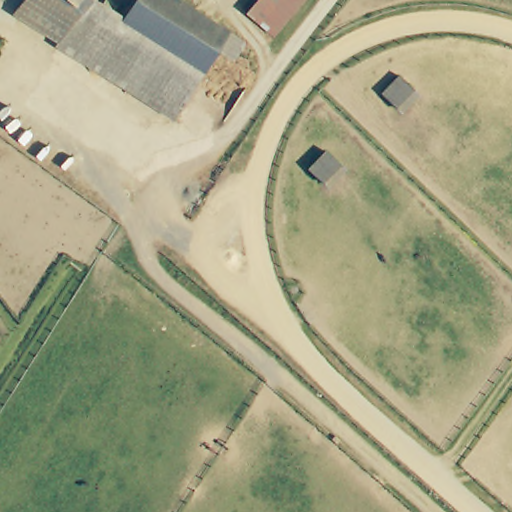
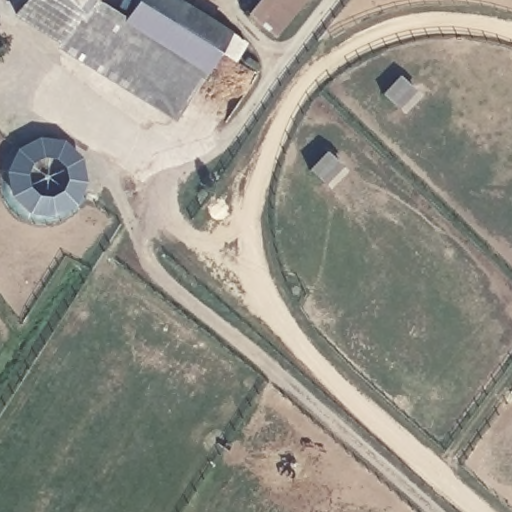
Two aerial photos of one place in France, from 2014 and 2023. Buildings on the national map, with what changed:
unchanged [(92,0),(68,27),(34,0),(92,0)]
unchanged [(122,22),(205,73),(181,115),(58,41),(68,27),(92,0),(97,0),(125,17),(122,22)]
unchanged [(181,0),(249,44),(236,66),(217,55),(205,73),(122,22),(125,17),(137,0),(181,0)]
unchanged [(243,11),(253,0),(299,0),(270,34),(243,11)]
new [(75,204),(51,217),(26,212),(9,196),(4,171),(15,148),(36,137),(63,139),(80,157),(85,181),(75,204)]

